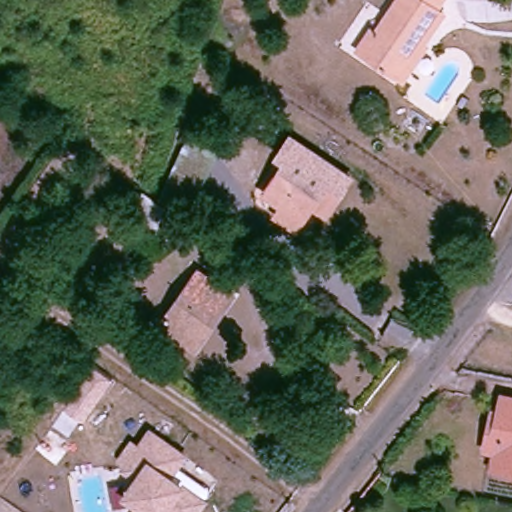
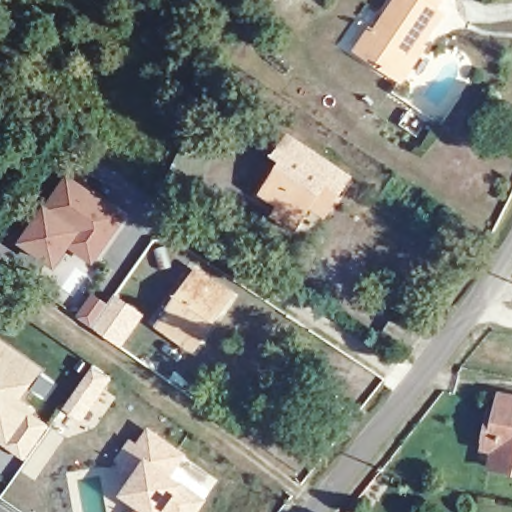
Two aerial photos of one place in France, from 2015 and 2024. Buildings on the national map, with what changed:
unchanged [(443,15),(422,45),(420,44),(397,79),(356,51),(371,30),(375,33),(397,0),(443,0),(436,10),(443,15)]
unchanged [(355,169),(330,206),(316,196),(303,216),(282,203),(287,196),(269,185),(290,152),(283,147),(295,129),(355,169)]
unchanged [(160,201),(187,140),(214,152),(187,213),(160,201)]
new [(94,265),(73,248),(57,270),(20,246),(47,205),(68,173),(128,215),(94,265)]
unchanged [(198,345),(165,322),(203,267),(236,290),(198,345)]
new [(108,305),(116,295),(145,315),(121,347),(76,316),(93,293),(108,305)]
new [(24,400),(37,410),(33,415),(50,425),(24,460),(0,443),(0,338),(43,369),(24,400)]
unchanged [(96,367),(111,378),(83,418),(68,408),(96,367)]
unchanged [(495,447),(485,445),(493,406),(499,406),(502,391),(512,393),(512,468),(491,464),(495,447)]
unchanged [(116,471),(118,468),(110,462),(117,452),(122,445),(131,450),(142,435),(175,458),(168,468),(199,490),(200,496),(190,512),(121,512),(114,474),(116,471)]

